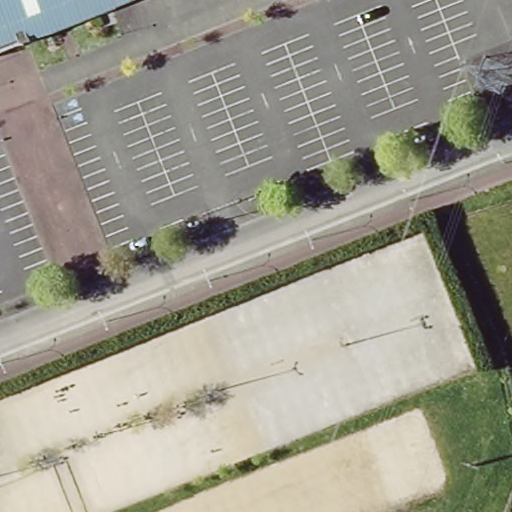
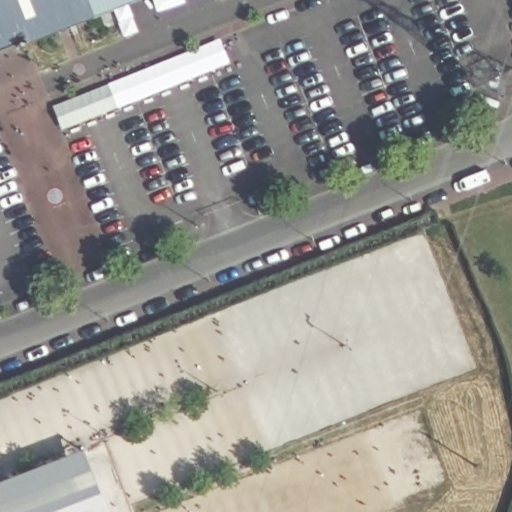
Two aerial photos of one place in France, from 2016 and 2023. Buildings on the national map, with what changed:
unchanged [(93,19),(94,21),(31,46),(30,42),(0,54),(0,0),(141,0),(93,19)]
new [(112,512),(0,512),(0,484),(88,450),(112,512)]

